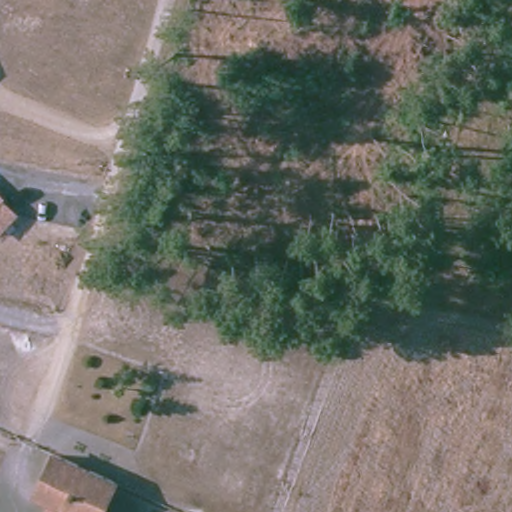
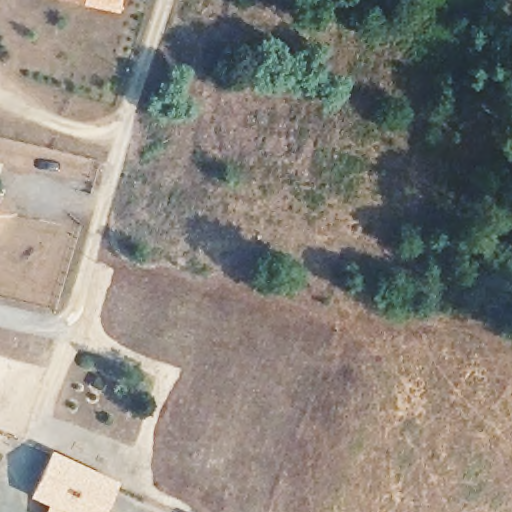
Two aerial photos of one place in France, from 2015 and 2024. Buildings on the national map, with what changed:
new [(122,0),(120,10),(66,0),(122,0)]
unchanged [(0,199),(0,194),(2,196),(0,199)]
unchanged [(0,230),(0,199),(16,213),(0,230)]
unchanged [(115,483),(102,512),(64,512),(35,498),(54,455),(115,483)]
unchanged [(50,505),(64,512),(46,512),(50,505)]

